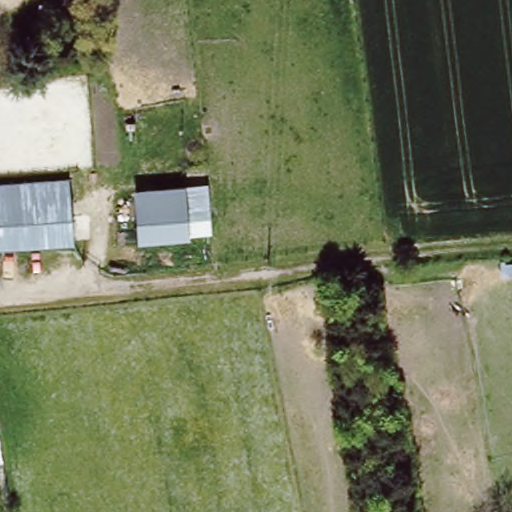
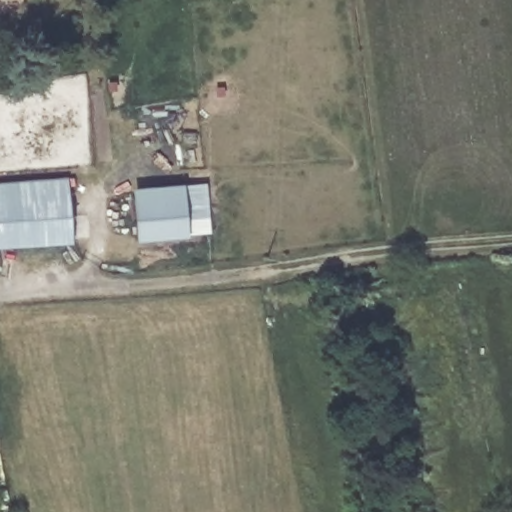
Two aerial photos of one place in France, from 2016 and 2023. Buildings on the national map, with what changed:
unchanged [(66,179),(71,246),(0,251),(0,184),(66,179)]
unchanged [(185,182),(207,182),(211,232),(190,236),(138,240),(134,187),(185,182)]

